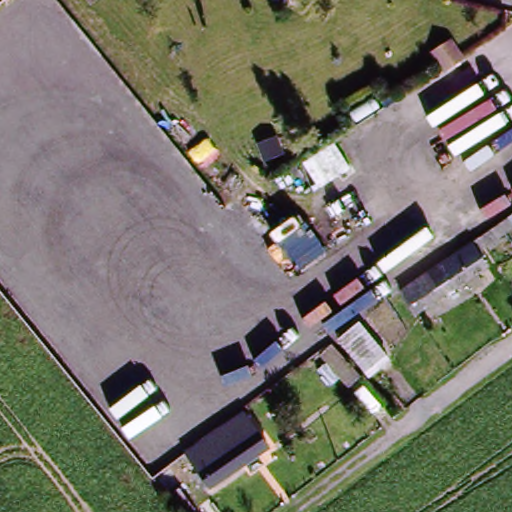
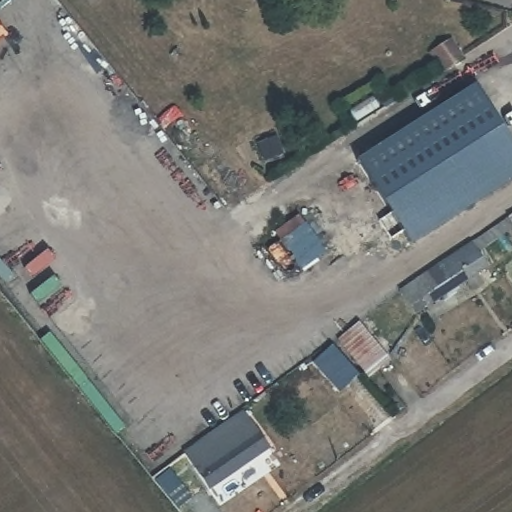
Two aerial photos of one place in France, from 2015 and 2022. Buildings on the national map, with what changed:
new [(512,141),(512,182),(410,246),(356,161),(475,84),(512,141)]
demolished [(429,138),(453,120),(464,111),(479,134),(485,143),(449,169),(444,173),(423,142),(429,138)]
unchanged [(479,271),(481,281),(471,290),(465,282),(419,316),(401,290),(477,236),(507,215),(512,223),(512,236),(487,252),(492,263),(479,271)]
unchanged [(393,356),(378,368),(354,332),(370,322),(393,356)]
unchanged [(334,355),(358,391),(345,400),(321,363),(334,355)]
unchanged [(242,414),(262,443),(204,485),(184,455),(242,414)]

